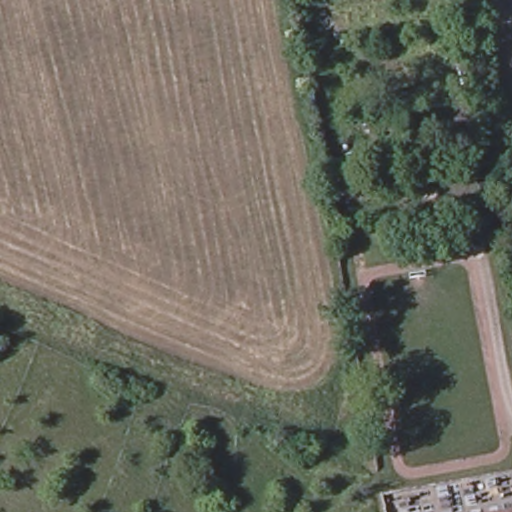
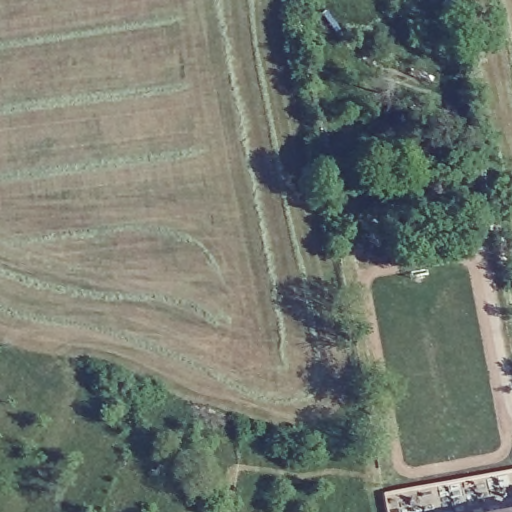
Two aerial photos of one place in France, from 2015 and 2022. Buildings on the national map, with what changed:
unchanged [(344,123),(393,122),(395,144),(345,147),(344,123)]

